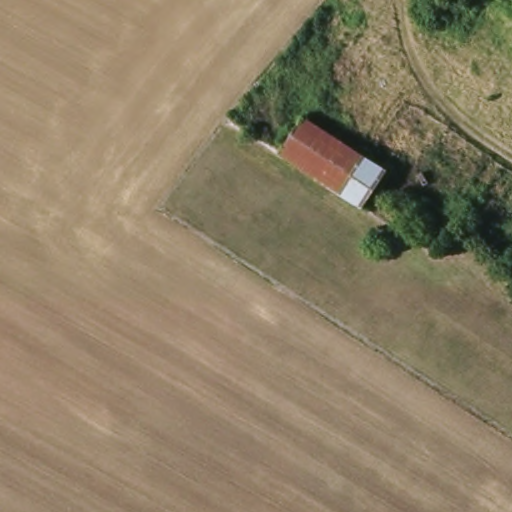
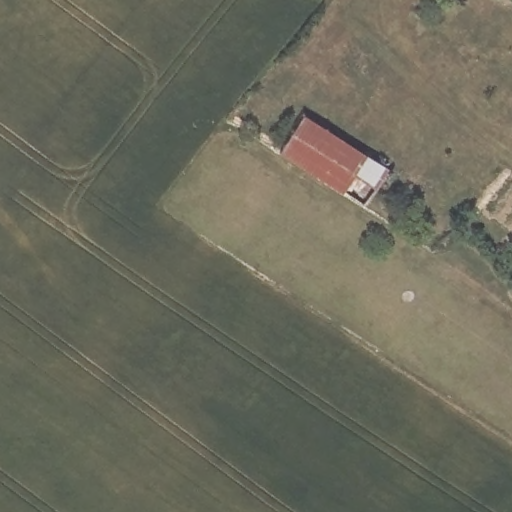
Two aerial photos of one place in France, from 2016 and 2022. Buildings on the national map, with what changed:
unchanged [(387,172),(362,208),(279,155),(303,118),(387,172)]

